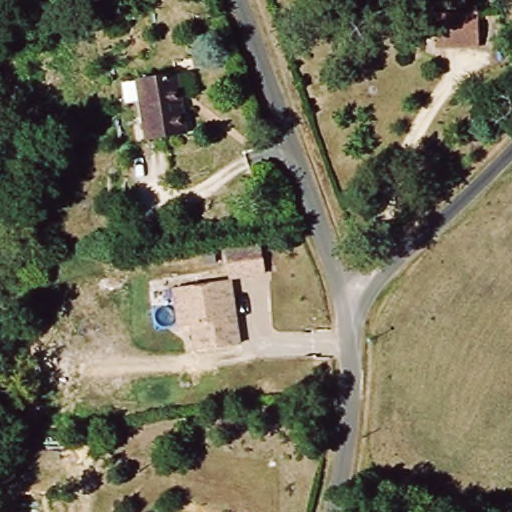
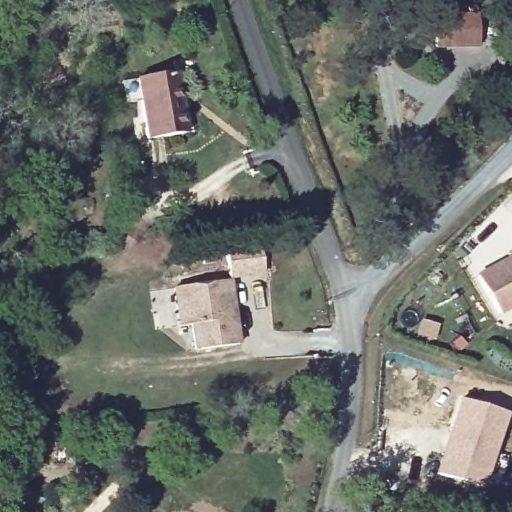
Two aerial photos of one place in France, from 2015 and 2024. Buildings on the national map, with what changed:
unchanged [(485,48),(434,52),(429,16),(482,10),(485,48)]
unchanged [(182,137),(144,143),(134,82),(172,76),(182,137)]
unchanged [(264,277),(228,282),(224,254),(260,248),(264,277)]
new [(474,274),(508,256),(505,251),(512,248),(512,306),(494,315),(474,274)]
unchanged [(194,355),(190,330),(184,330),(176,331),(171,292),(179,291),(212,287),(228,285),(229,296),(238,348),(194,355)]
new [(504,415),(479,490),(433,474),(459,400),(504,415)]

